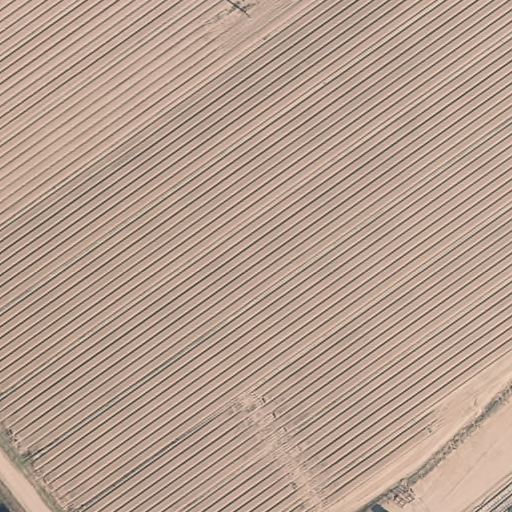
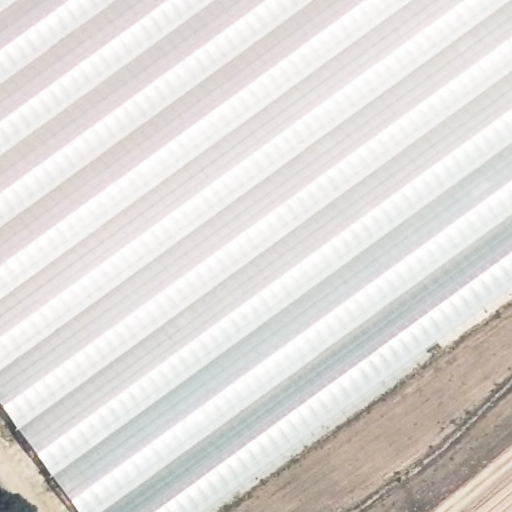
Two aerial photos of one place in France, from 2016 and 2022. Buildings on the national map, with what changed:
new [(206,512),(74,512),(0,409),(0,0),(512,0),(512,290),(206,512)]

